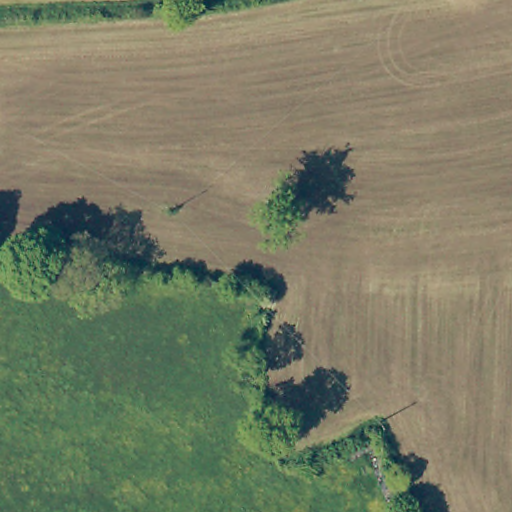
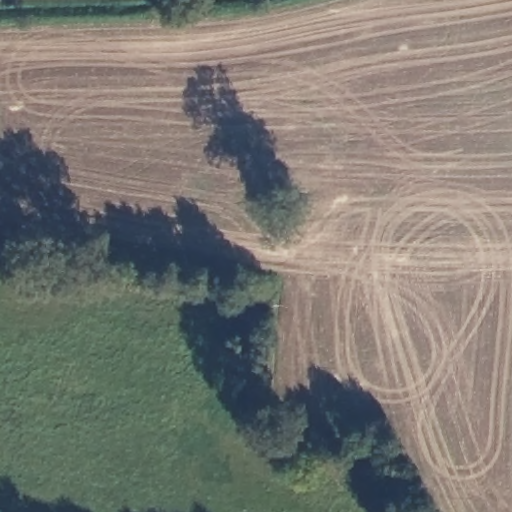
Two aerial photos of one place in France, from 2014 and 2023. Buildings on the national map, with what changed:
[]

